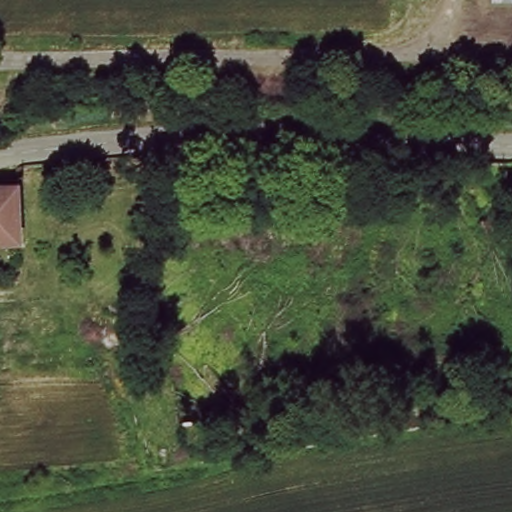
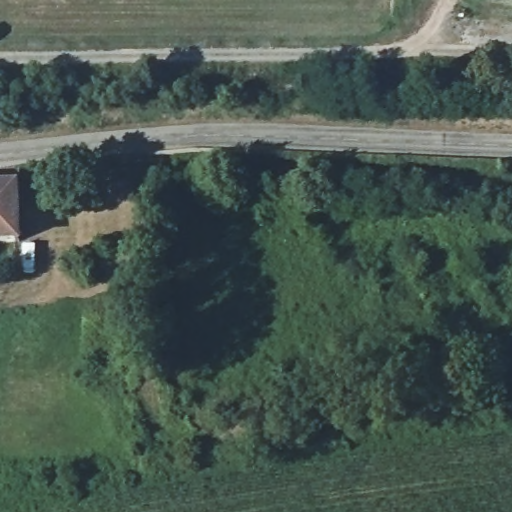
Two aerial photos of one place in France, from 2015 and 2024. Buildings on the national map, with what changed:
unchanged [(23,241),(0,242),(0,184),(23,182),(23,241)]

